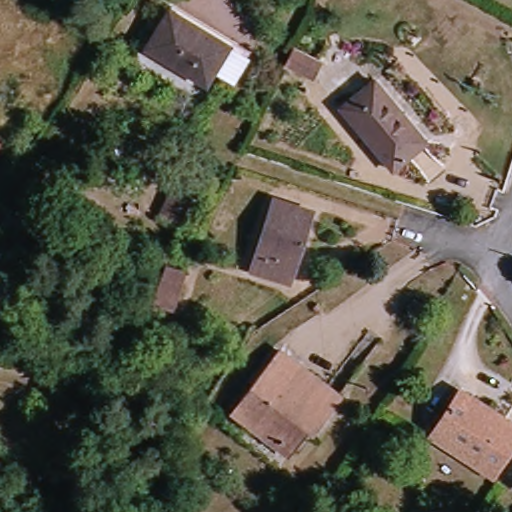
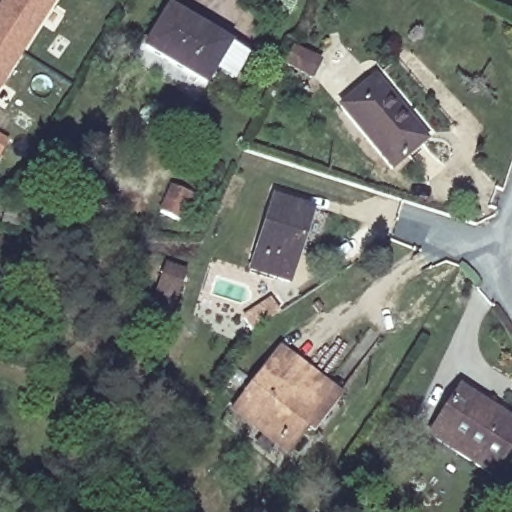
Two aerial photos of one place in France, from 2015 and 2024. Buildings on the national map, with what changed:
new [(0,79),(0,5),(3,0),(51,0),(0,79)]
unchanged [(184,6),(237,43),(210,81),(156,43),(184,6)]
unchanged [(298,48),(310,53),(324,59),(313,83),(286,71),(298,48)]
unchanged [(354,107),(390,77),(436,137),(401,165),(354,107)]
unchanged [(0,159),(0,140),(8,143),(0,159)]
unchanged [(166,189),(189,199),(177,224),(155,215),(166,189)]
unchanged [(320,210),(297,280),(260,268),(282,198),(320,210)]
unchanged [(153,300),(156,291),(165,265),(185,272),(177,297),(174,307),(153,300)]
unchanged [(249,405),(284,353),(352,399),(322,445),(312,439),(305,449),(276,431),(273,435),(254,423),(243,415),(249,405)]
unchanged [(442,425),(467,384),(512,414),(512,458),(502,474),(462,445),(439,430),(442,425)]

